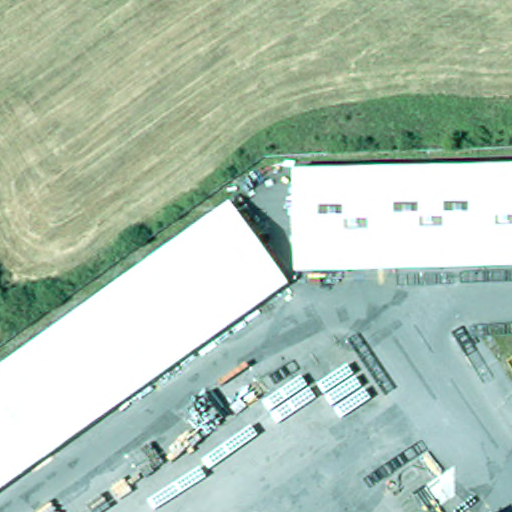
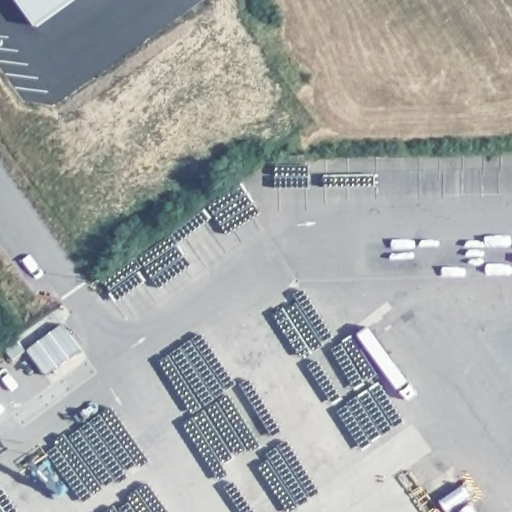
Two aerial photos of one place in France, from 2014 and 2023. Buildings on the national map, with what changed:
demolished [(298,273),(295,173),(512,164),(512,264),(298,273)]
demolished [(0,493),(0,370),(231,206),(290,288),(0,493)]
new [(64,325),(82,350),(48,376),(28,351),(64,325)]

